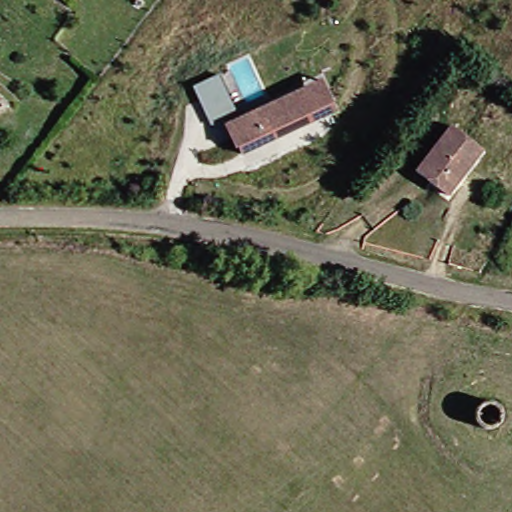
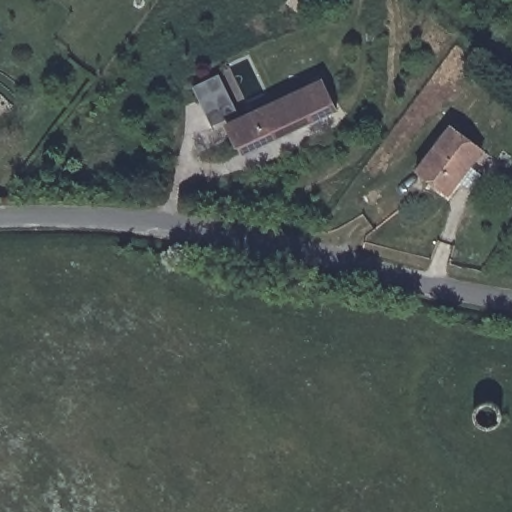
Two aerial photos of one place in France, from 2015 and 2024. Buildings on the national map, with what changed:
unchanged [(327,79),(340,109),(326,115),(242,151),(232,129),(229,121),(243,116),(312,86),(327,79)]
unchanged [(457,126),(487,151),(451,196),(442,190),(421,173),(457,126)]
unchanged [(490,401),(495,403),(498,406),(501,411),(501,416),(500,421),(497,425),(493,428),(489,430),(484,430),(480,429),(476,425),(473,421),(472,416),(472,411),(475,407),(478,403),(483,401),(485,401),(490,401)]

